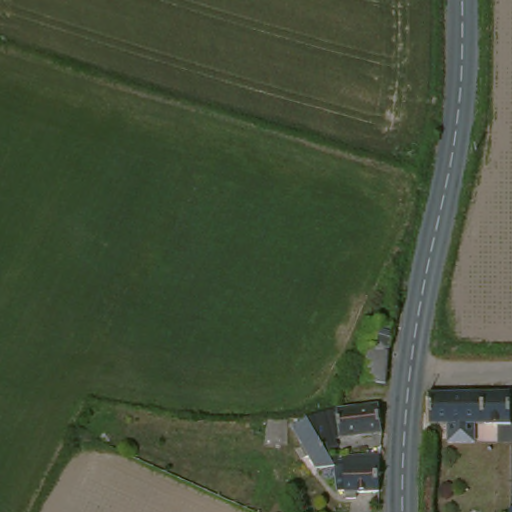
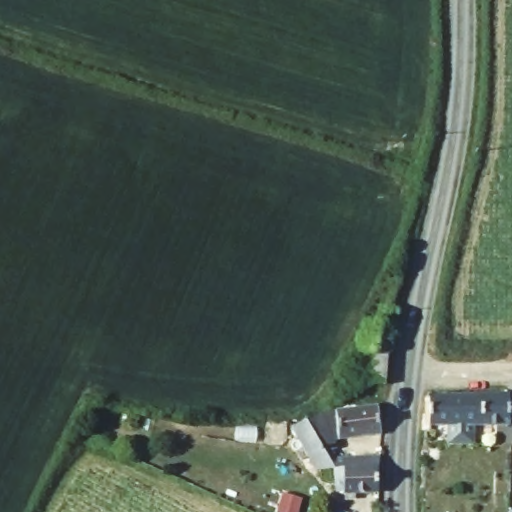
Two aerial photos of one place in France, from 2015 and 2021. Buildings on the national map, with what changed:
unchanged [(346,379),(358,349),(361,333),(369,335),(374,320),(387,322),(394,324),(391,340),(391,351),(389,354),(387,384),(346,379)]
unchanged [(507,386),(507,418),(470,420),(471,438),(446,439),(445,422),(426,423),(424,394),(507,386)]
unchanged [(341,422),(327,424),(327,412),(331,411),(384,407),(385,431),(341,434),(341,422)]
unchanged [(322,472),(300,432),(316,419),(344,469),(344,474),(322,472)]
unchanged [(344,474),(344,469),(343,458),(386,455),(389,492),(344,494),(344,474)]

